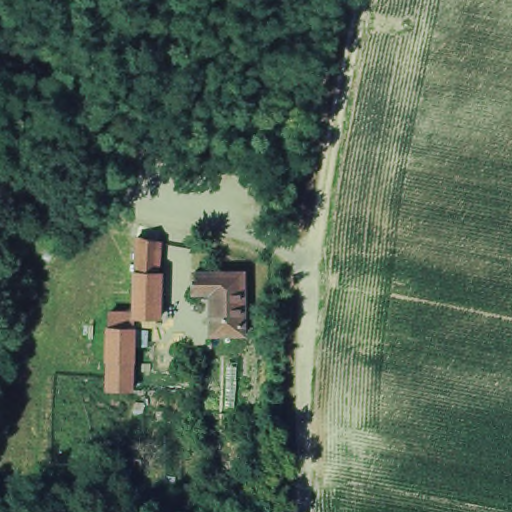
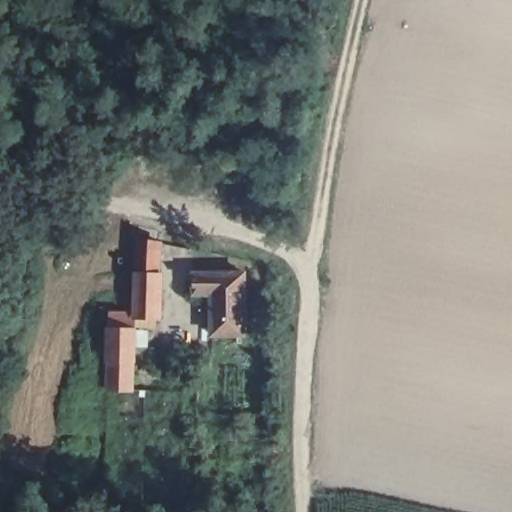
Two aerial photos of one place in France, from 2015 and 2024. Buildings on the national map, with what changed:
unchanged [(107,328),(107,312),(133,314),(134,274),(137,234),(157,238),(153,274),(160,275),(159,320),(133,319),(134,329),(132,361),(130,378),(130,388),(107,387),(107,376),(107,359),(107,354),(107,328)]
unchanged [(235,276),(235,336),(200,334),(200,291),(184,290),(185,273),(235,276)]

